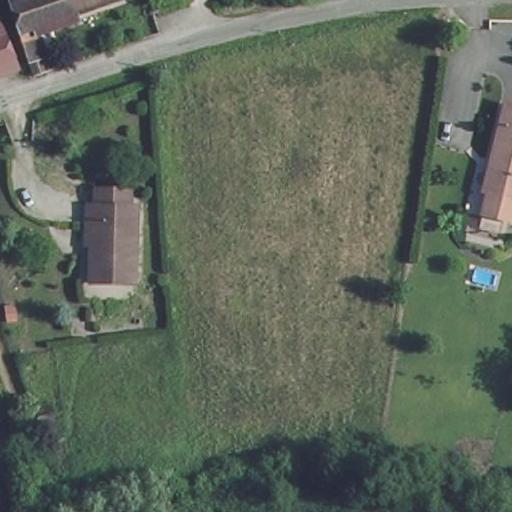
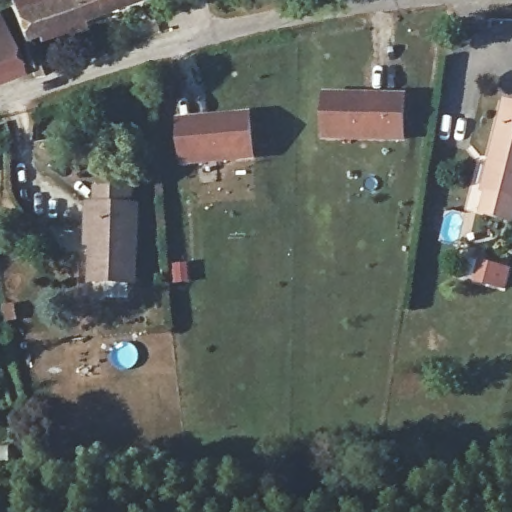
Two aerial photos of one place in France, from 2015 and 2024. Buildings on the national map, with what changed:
unchanged [(17,0),(131,0),(39,26),(47,67),(30,72),(17,0)]
unchanged [(20,74),(0,79),(0,13),(7,11),(20,74)]
new [(323,92),(407,94),(405,141),(322,140),(323,92)]
unchanged [(512,98),(512,219),(482,210),(489,186),(482,184),(502,96),(512,98)]
new [(177,119),(252,112),(256,160),(181,167),(177,119)]
unchanged [(135,186),(136,200),(143,200),(143,283),(89,285),(88,200),(97,200),(96,186),(135,186)]

